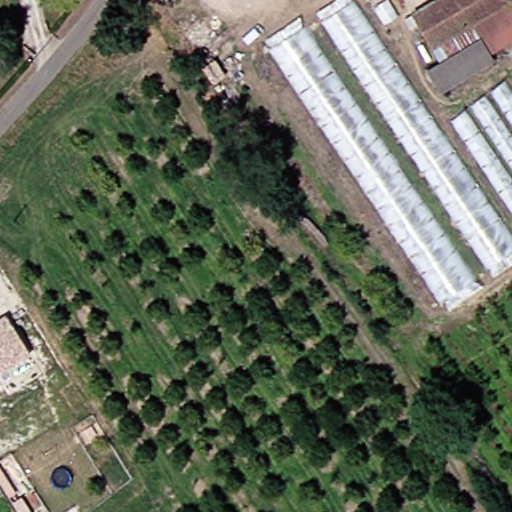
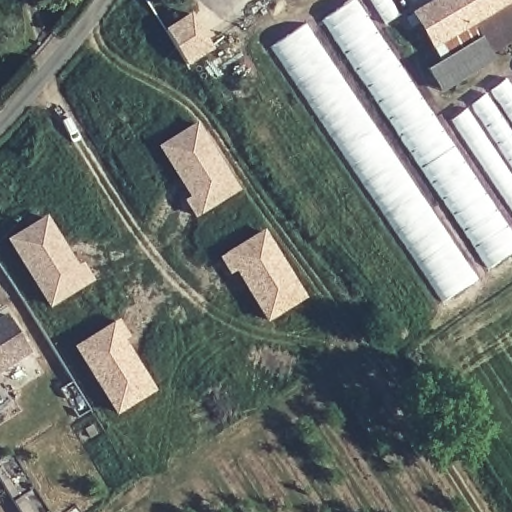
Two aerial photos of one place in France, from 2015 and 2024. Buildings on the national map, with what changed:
unchanged [(512,233),(512,269),(452,312),(266,43),(338,0),(358,0),(512,233)]
unchanged [(442,0),(512,0),(512,44),(494,54),(497,60),(445,93),(428,70),(442,61),(438,55),(429,62),(420,48),(431,41),(414,15),(442,0)]
unchanged [(506,80),(512,88),(512,206),(454,119),(506,80)]
new [(195,121),(237,185),(197,212),(187,197),(197,191),(184,171),(180,174),(159,144),(195,121)]
new [(184,171),(197,191),(192,194),(180,174),(184,171)]
new [(65,252),(78,271),(74,274),(83,268),(93,282),(53,309),(10,245),(45,222),(65,252)]
new [(266,228),(309,292),(273,315),(253,285),(258,282),(245,263),(235,270),(226,255),(266,228)]
new [(245,263),(258,282),(253,285),(240,266),(245,263)]
unchanged [(29,351),(0,370),(0,319),(6,315),(29,351)]
new [(122,324),(131,338),(121,345),(134,364),(139,361),(159,391),(124,415),(81,351),(122,324)]
new [(126,342),(139,361),(134,364),(122,344),(126,342)]

